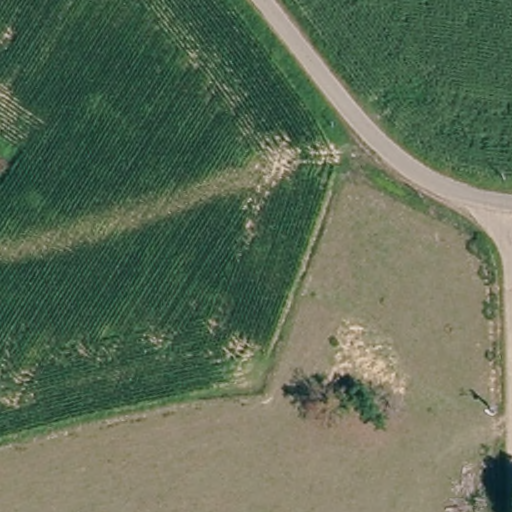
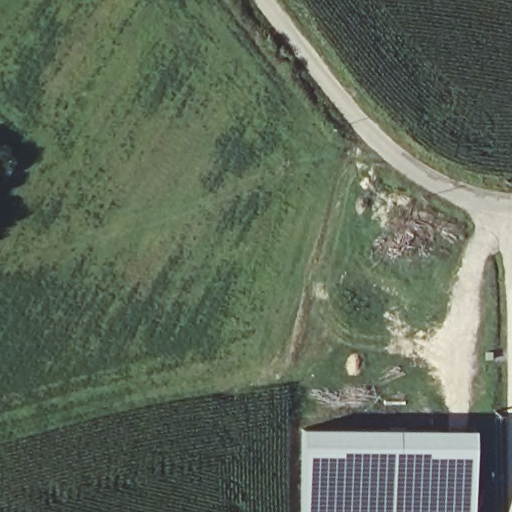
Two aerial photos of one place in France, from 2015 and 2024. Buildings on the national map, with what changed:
new [(473,512),(303,512),(303,428),(474,428),(473,512)]

